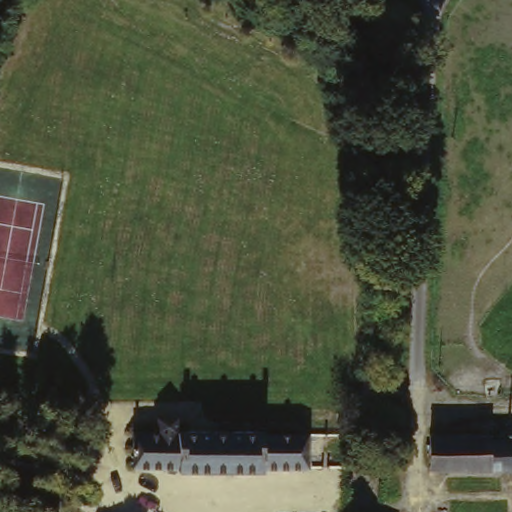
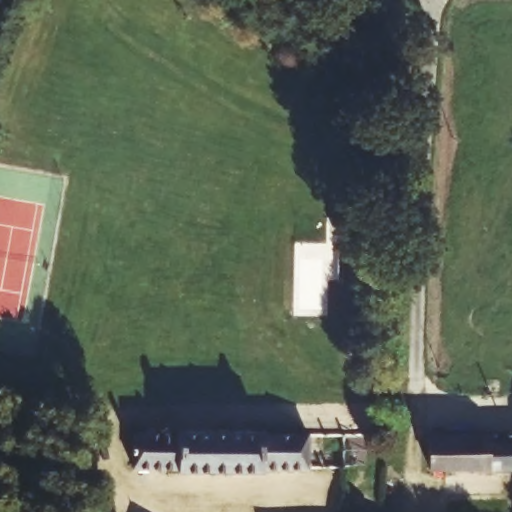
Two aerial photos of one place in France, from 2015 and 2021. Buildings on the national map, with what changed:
unchanged [(128,441),(132,437),(152,436),(154,420),(174,420),(173,436),(306,436),(306,476),(130,474),(128,441)]
unchanged [(434,435),(512,437),(512,472),(432,474),(434,435)]

